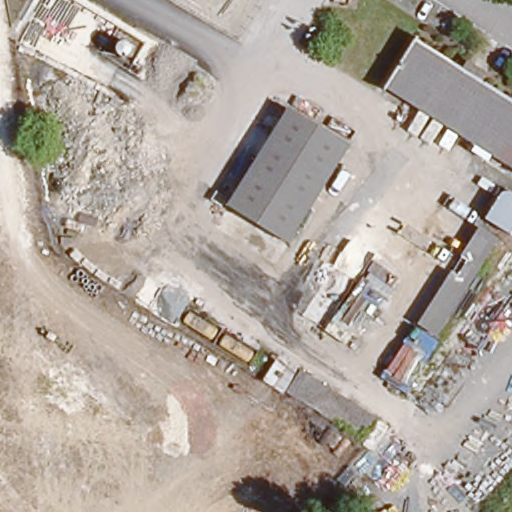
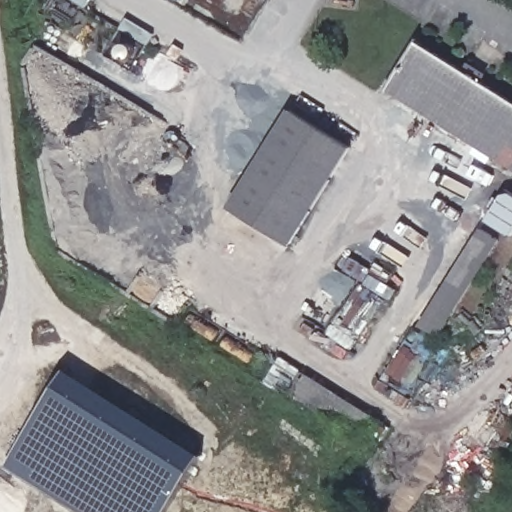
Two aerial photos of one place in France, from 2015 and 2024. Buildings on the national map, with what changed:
unchanged [(475,146),(387,88),(419,37),(466,67),(473,58),(489,69),(482,78),(512,97),(512,171),(489,155),(485,162),(472,154),(475,146)]
unchanged [(288,207),(245,179),(294,107),(352,144),(287,243),(272,232),(288,207)]
unchanged [(227,205),(245,179),(288,207),(272,232),(227,205)]
unchanged [(502,187),(512,193),(512,239),(481,218),(502,187)]
unchanged [(397,338),(463,240),(484,255),(418,352),(397,338)]
new [(204,453),(167,512),(80,512),(7,466),(67,368),(204,453)]
new [(299,370),(373,420),(358,441),(285,391),(299,370)]

